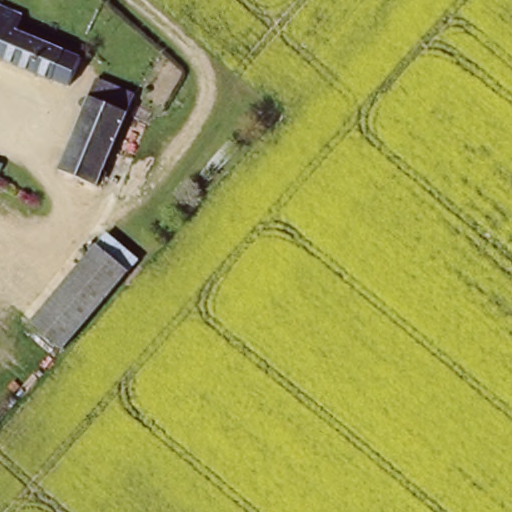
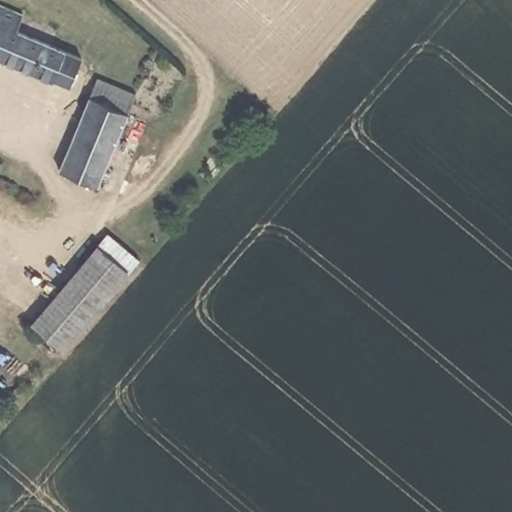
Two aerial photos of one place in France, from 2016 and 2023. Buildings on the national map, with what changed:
unchanged [(70,88),(53,81),(52,82),(0,60),(0,7),(20,16),(15,30),(83,59),(70,88)]
unchanged [(61,167),(98,80),(136,96),(106,165),(98,182),(61,167)]
unchanged [(125,271),(60,349),(56,346),(30,325),(93,246),(125,271)]

